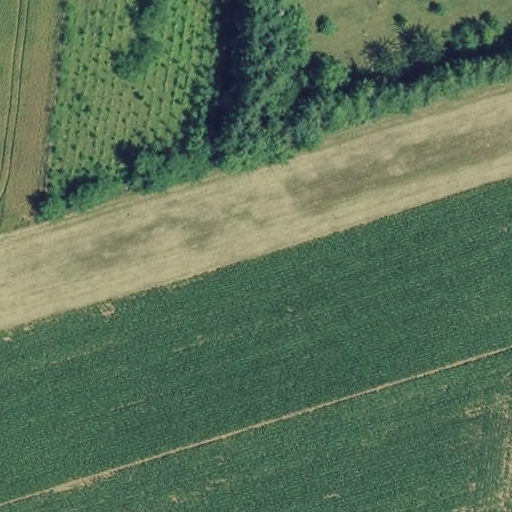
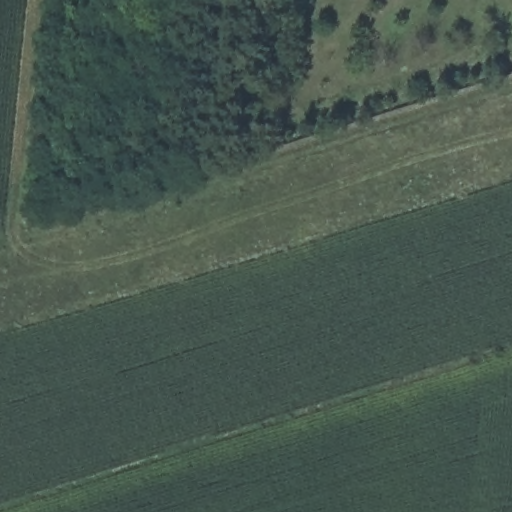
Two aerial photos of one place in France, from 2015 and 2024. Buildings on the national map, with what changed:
[]

